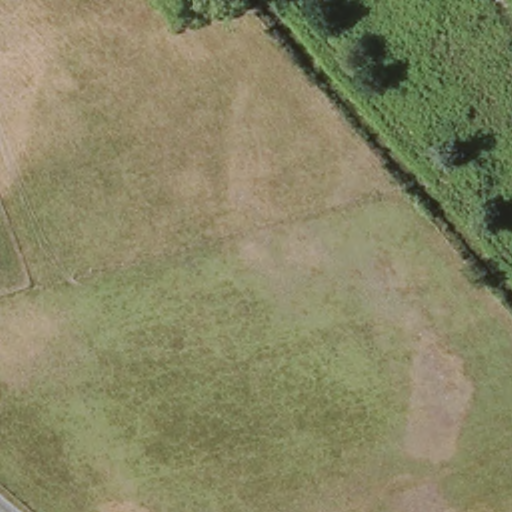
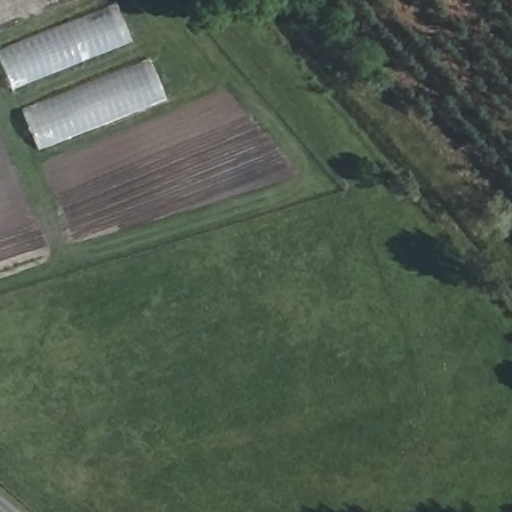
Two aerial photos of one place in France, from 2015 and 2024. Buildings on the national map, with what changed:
new [(0,28),(0,0),(65,0),(0,28)]
new [(114,2),(130,40),(10,89),(0,64),(0,51),(114,2)]
new [(148,59),(165,98),(36,149),(20,110),(148,59)]

